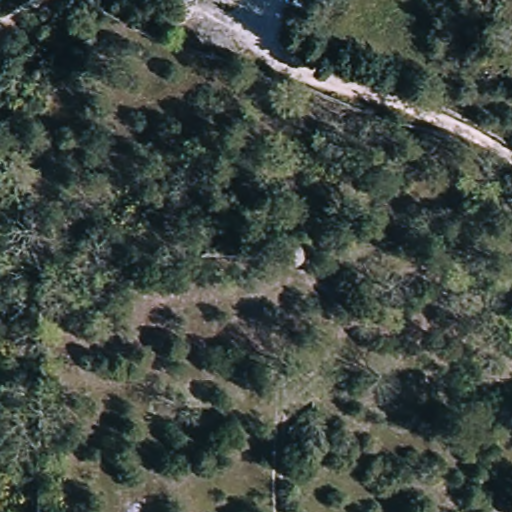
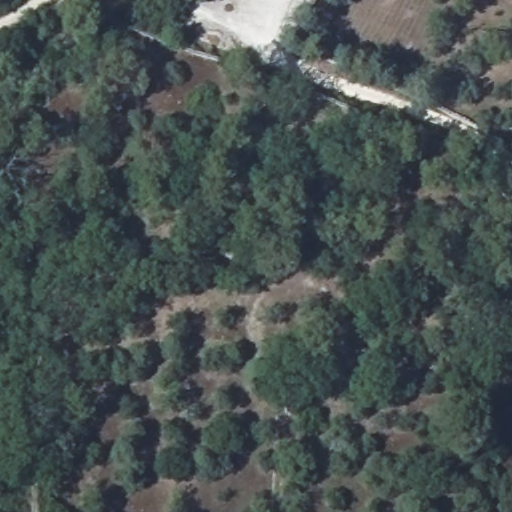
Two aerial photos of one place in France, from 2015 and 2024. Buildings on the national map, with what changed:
unchanged [(307,270),(301,271),(293,268),(289,262),(289,256),(294,251),(303,249),(310,254),(313,257),(313,263),(307,270)]

